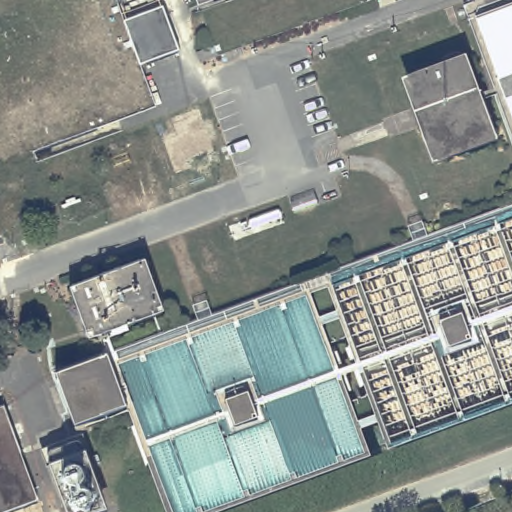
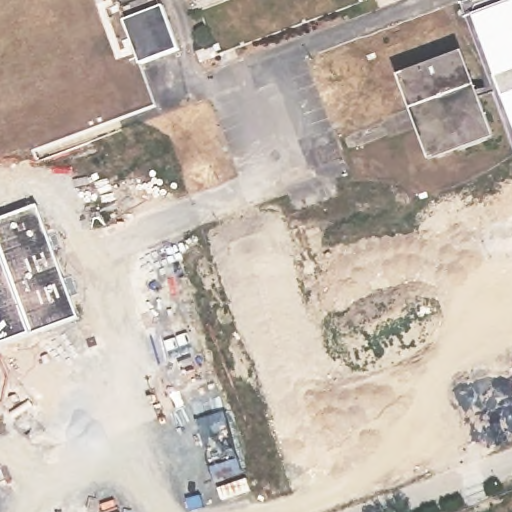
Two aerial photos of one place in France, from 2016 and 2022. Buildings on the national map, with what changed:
unchanged [(193,0),(227,0),(197,11),(193,0)]
unchanged [(496,0),(512,0),(512,132),(468,10),(496,0)]
unchanged [(140,64),(123,20),(162,6),(179,50),(140,64)]
unchanged [(415,87),(468,68),(495,140),(441,160),(415,87)]
demolished [(512,213),(512,409),(395,452),(331,279),(512,213)]
demolished [(88,338),(69,287),(145,264),(157,311),(88,338)]
demolished [(160,469),(146,429),(139,411),(87,430),(81,432),(75,414),(62,378),(307,288),(372,460),(228,512),(176,512),(160,469)]
demolished [(18,441),(0,433),(0,406),(5,404),(18,441)]
demolished [(40,502),(9,512),(0,512),(0,433),(18,441),(40,502)]

